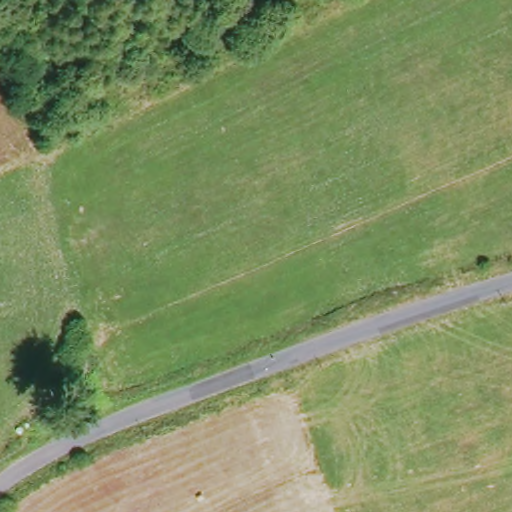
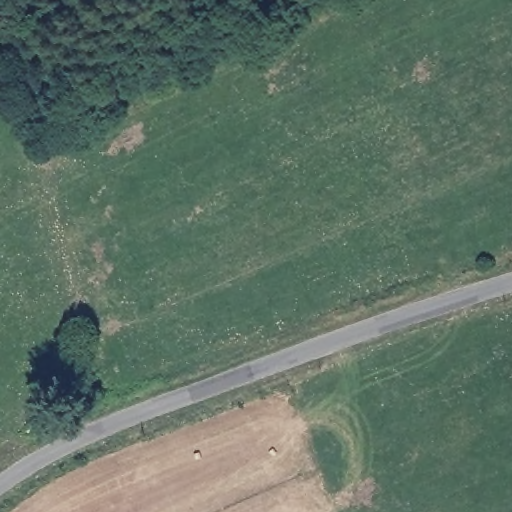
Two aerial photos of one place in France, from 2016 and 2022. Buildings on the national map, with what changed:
[]

